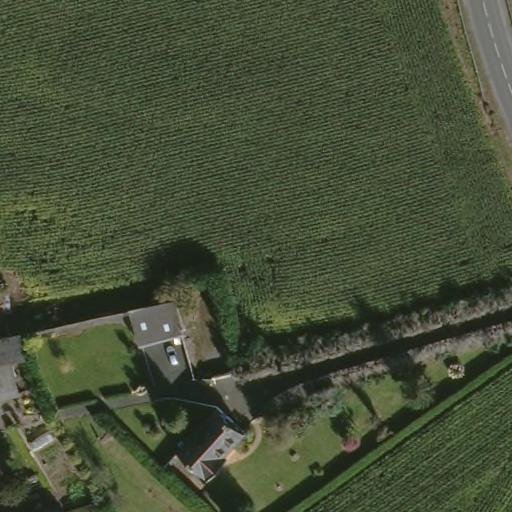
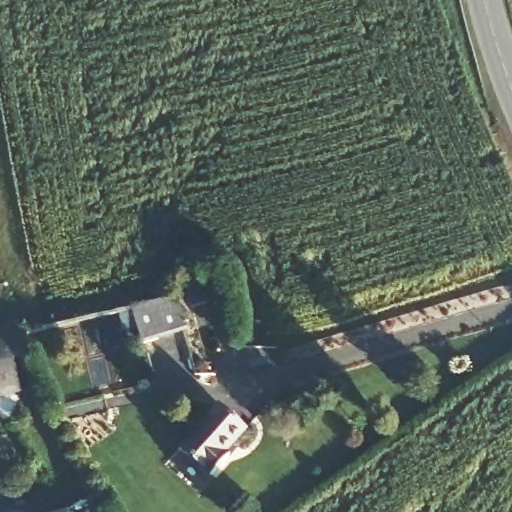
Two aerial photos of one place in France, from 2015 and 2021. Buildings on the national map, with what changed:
unchanged [(186,294),(194,328),(150,339),(141,305),(186,294)]
unchanged [(28,353),(19,354),(0,359),(0,338),(20,333),(28,353)]
unchanged [(27,390),(0,397),(0,359),(19,354),(27,390)]
unchanged [(225,406),(251,429),(239,443),(243,447),(223,469),(219,470),(192,444),(225,406)]

